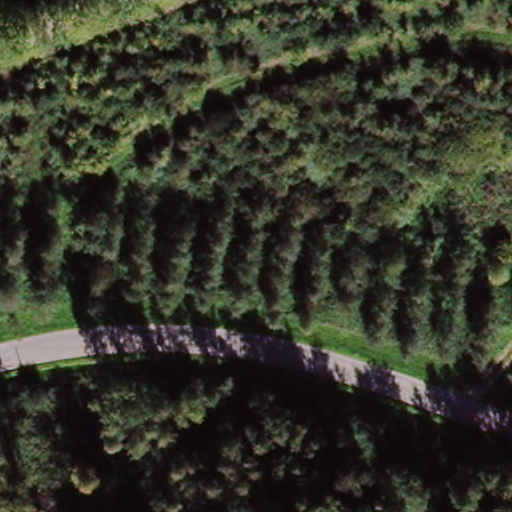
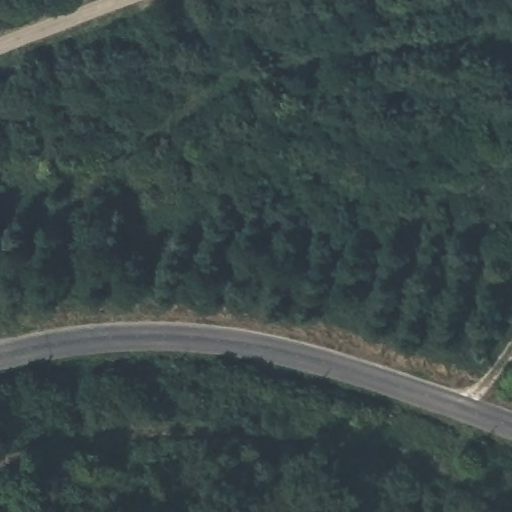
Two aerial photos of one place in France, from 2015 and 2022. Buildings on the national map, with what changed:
[]

